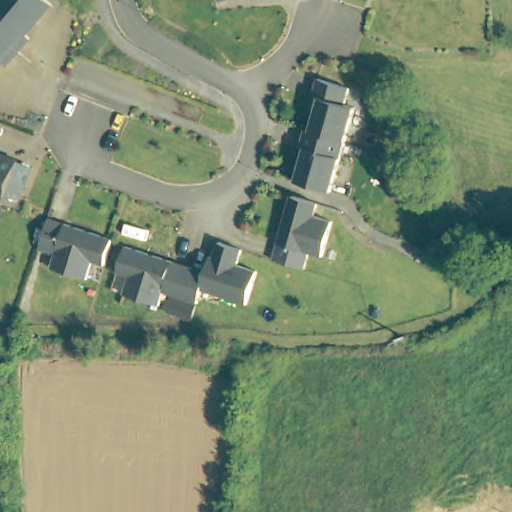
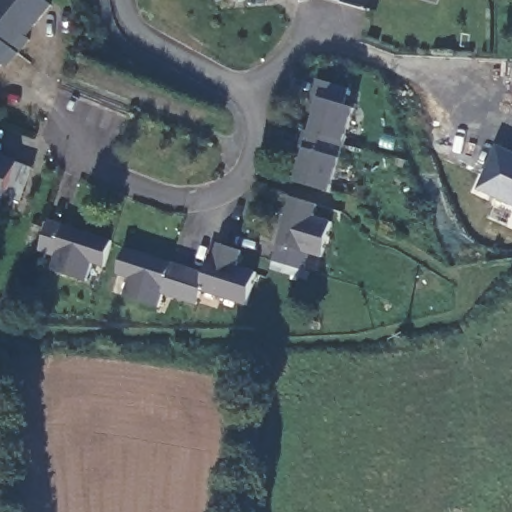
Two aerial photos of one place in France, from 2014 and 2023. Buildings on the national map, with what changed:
unchanged [(0,66),(0,0),(45,0),(51,5),(0,66)]
unchanged [(221,0),(227,0),(222,2),(221,0)]
unchanged [(356,90),(348,105),(356,107),(330,192),(296,182),(306,148),(301,147),(306,130),(312,132),(316,112),(310,110),(319,80),(356,90)]
new [(512,150),(512,204),(480,188),(501,145),(512,150)]
unchanged [(19,202),(0,195),(0,154),(34,167),(19,202)]
unchanged [(291,195),(319,203),(315,217),(332,222),(323,257),(306,253),(302,268),(273,261),(291,195)]
unchanged [(104,267),(92,264),(87,281),(49,269),(52,256),(36,251),(46,219),(113,240),(104,267)]
unchanged [(242,250),(237,266),(257,272),(247,306),(201,292),(189,322),(165,313),(170,297),(162,295),(158,306),(122,295),(127,277),(115,273),(124,248),(207,272),(210,257),(214,257),(219,242),(242,250)]

